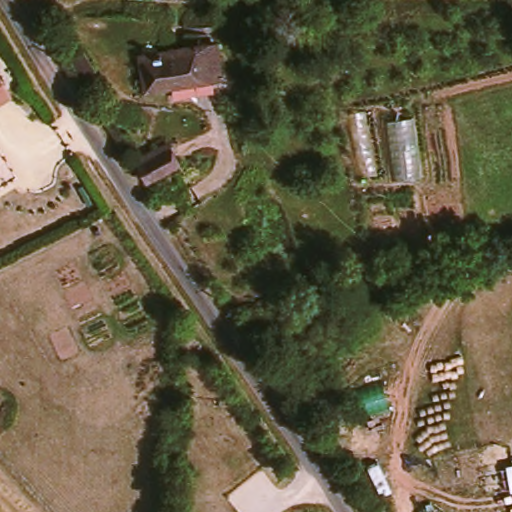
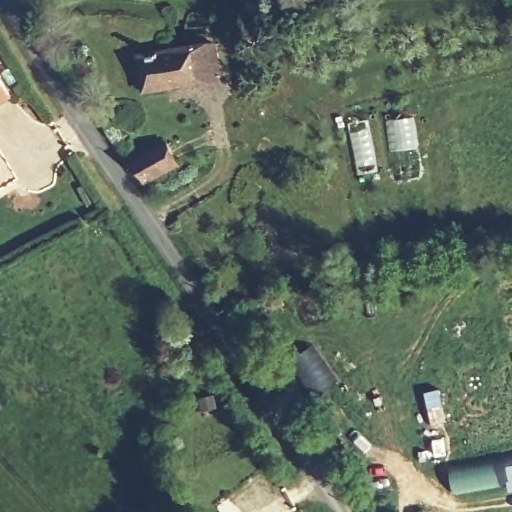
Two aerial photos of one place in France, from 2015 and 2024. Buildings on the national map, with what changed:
unchanged [(146,89),(144,51),(197,46),(212,44),(215,78),(200,78),(201,83),(146,89)]
unchanged [(0,78),(9,92),(0,98),(0,78)]
unchanged [(402,179),(394,121),(419,117),(429,176),(402,179)]
unchanged [(133,158),(162,147),(172,170),(142,183),(133,158)]
new [(511,490),(509,484),(456,493),(452,469),(512,460),(512,490),(511,490)]

